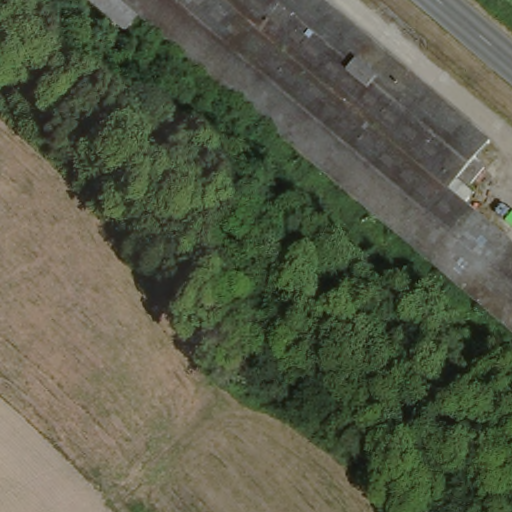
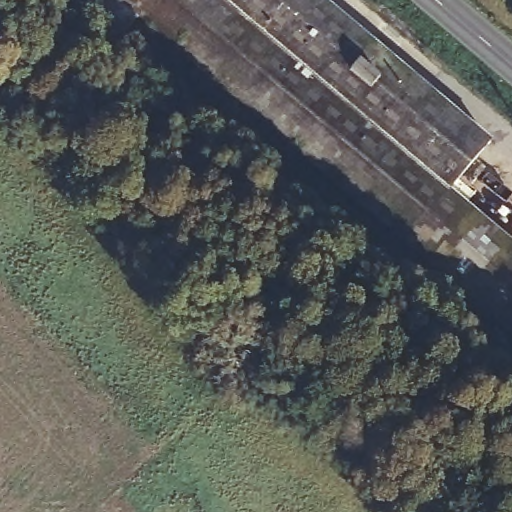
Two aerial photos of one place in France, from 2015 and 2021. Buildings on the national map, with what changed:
unchanged [(474,161),(449,188),(512,242),(512,331),(124,0),(324,0),(512,159),(512,189),(474,161)]

